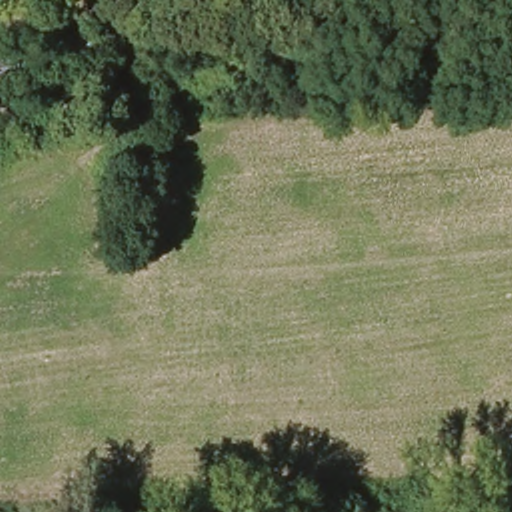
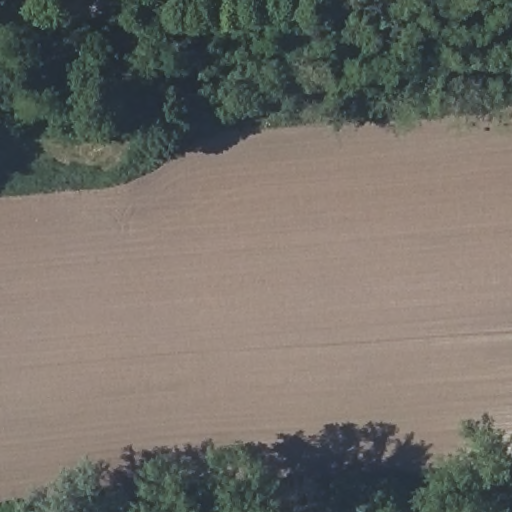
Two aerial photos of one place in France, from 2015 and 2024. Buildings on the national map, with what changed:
unchanged [(107,61),(91,65),(87,36),(103,35),(107,61)]

